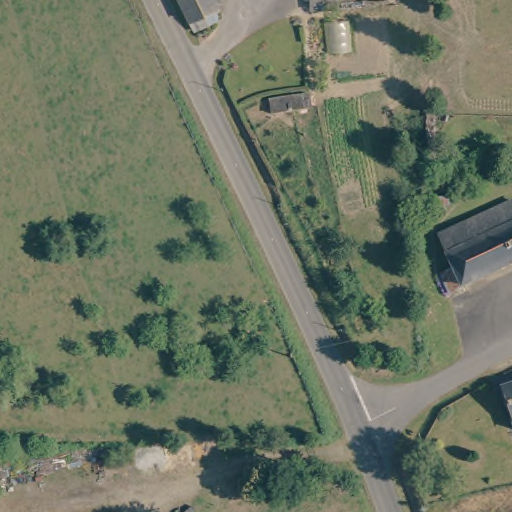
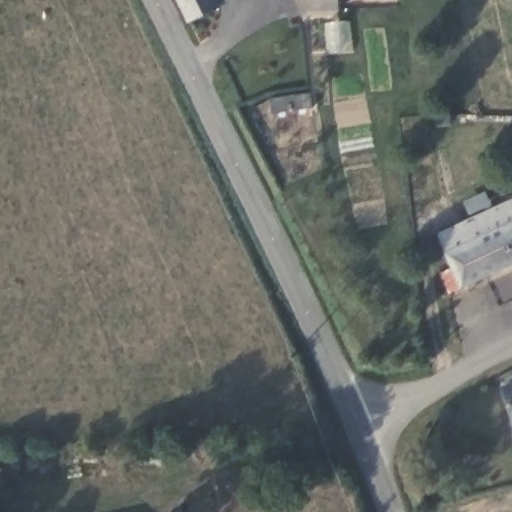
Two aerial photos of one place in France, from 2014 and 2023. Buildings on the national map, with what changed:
unchanged [(184,0),(219,0),(223,7),(208,15),(213,25),(199,31),(184,0)]
unchanged [(311,6),(311,0),(337,0),(337,4),(311,6)]
unchanged [(268,101),(313,94),(315,108),(270,115),(268,101)]
unchanged [(453,264),(438,231),(512,198),(512,259),(450,287),(442,268),(453,264)]
unchanged [(502,389),(512,385),(512,419),(502,389)]

